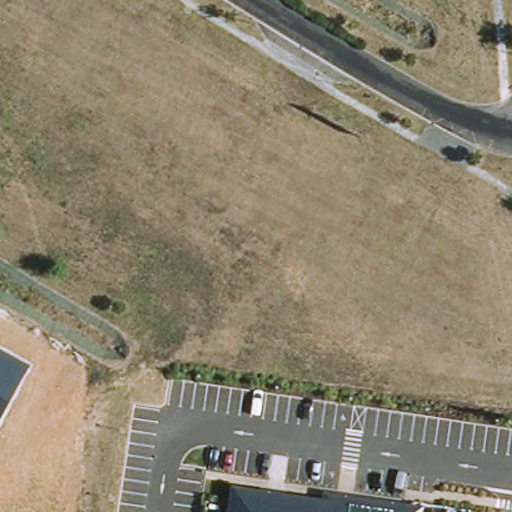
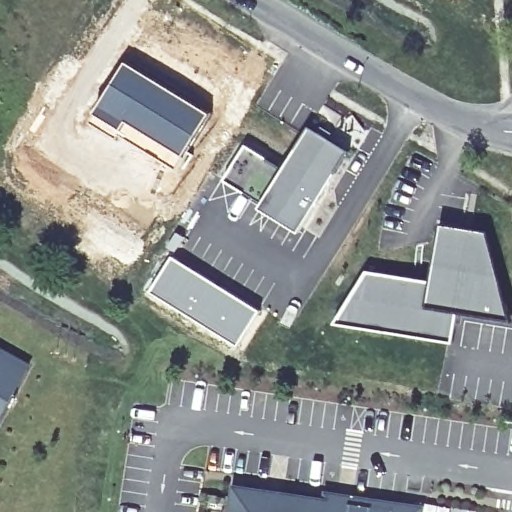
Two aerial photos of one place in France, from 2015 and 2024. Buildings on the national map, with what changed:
new [(125,59),(211,112),(182,156),(147,135),(144,140),(147,142),(143,148),(119,133),(116,136),(89,119),(125,59)]
new [(245,145),(283,169),(309,126),(350,151),(300,233),(259,208),(262,204),(223,181),(245,145)]
new [(457,312),(453,342),(337,322),(367,272),(432,279),(442,227),(490,235),(511,321),(457,312)]
new [(172,257),(261,311),(239,346),(151,292),(172,257)]
unchanged [(31,364),(0,423),(0,347),(31,364)]
unchanged [(324,498),(325,489),(425,505),(423,512),(228,512),(232,484),(324,498)]

